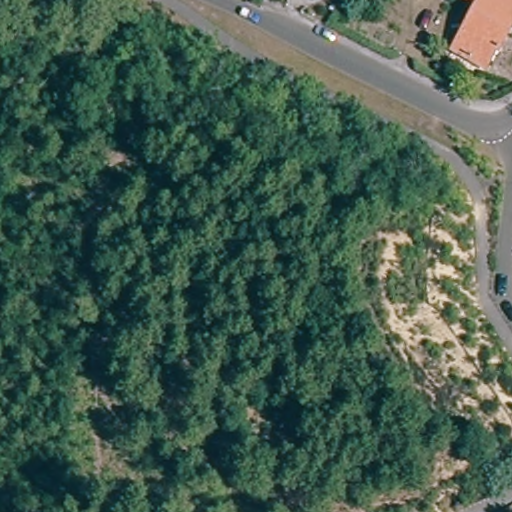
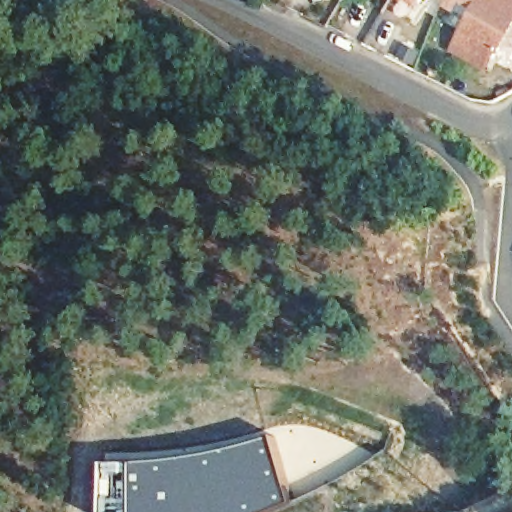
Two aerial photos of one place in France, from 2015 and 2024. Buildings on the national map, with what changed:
unchanged [(494,39),(485,57),(454,41),(477,0),(512,0),(512,16),(498,42),(494,39)]
new [(133,462),(197,454),(273,436),(297,503),(276,512),(133,512),(133,462)]
new [(107,462),(133,462),(133,512),(106,512),(107,462)]

